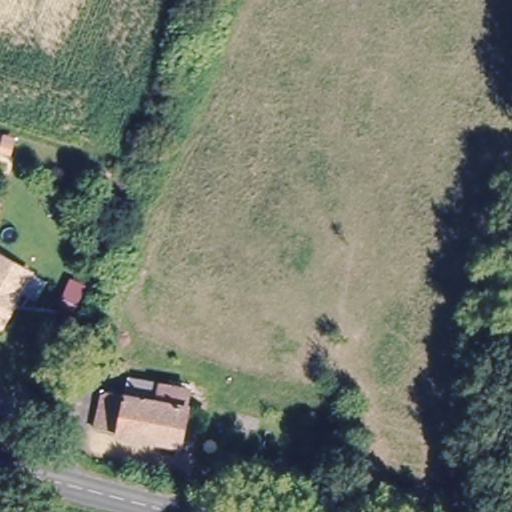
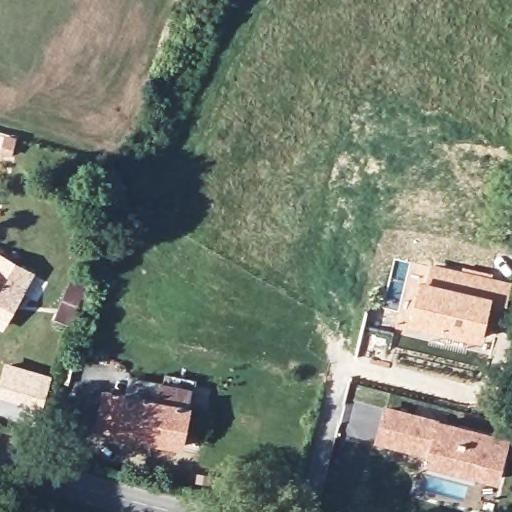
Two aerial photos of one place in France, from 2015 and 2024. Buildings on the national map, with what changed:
unchanged [(16,139),(12,153),(4,151),(8,137),(16,139)]
new [(397,312),(407,272),(410,261),(473,270),(511,281),(504,310),(490,306),(481,342),(406,325),(405,331),(380,325),(384,309),(397,312)]
unchanged [(24,278),(13,297),(0,322),(0,264),(24,278)]
new [(31,398),(20,395),(18,402),(0,396),(0,375),(4,361),(48,373),(43,393),(32,392),(31,398)]
unchanged [(103,391),(188,406),(180,444),(95,428),(103,391)]
new [(436,418),(510,437),(499,484),(424,463),(426,455),(375,442),(384,404),(436,418)]

